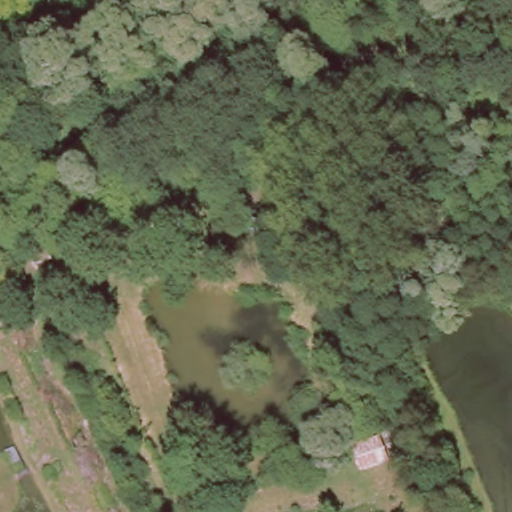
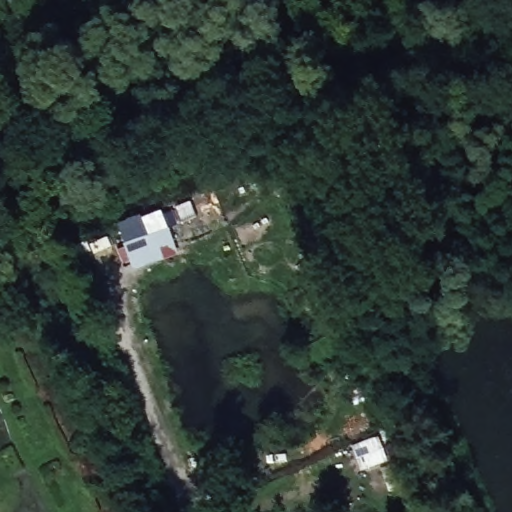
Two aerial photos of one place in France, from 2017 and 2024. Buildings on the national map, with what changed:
new [(135,269),(116,223),(159,207),(176,253),(135,269)]

